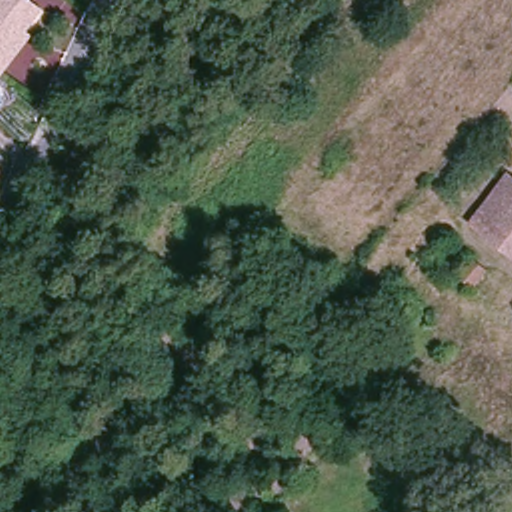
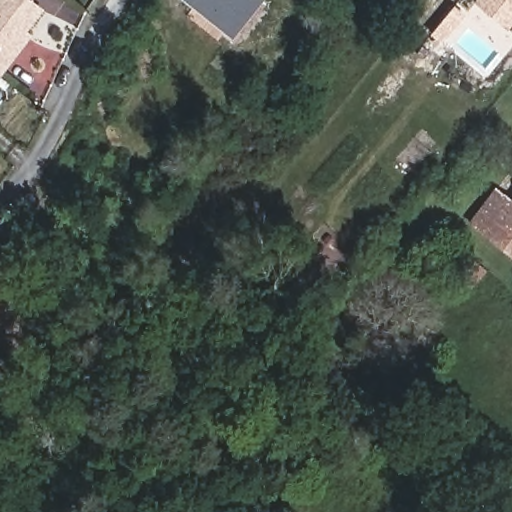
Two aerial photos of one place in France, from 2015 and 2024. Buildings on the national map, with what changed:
unchanged [(42,6),(9,51),(14,56),(1,72),(0,71),(0,0),(34,0),(42,6)]
new [(234,40),(182,0),(265,0),(234,40)]
new [(474,2),(476,0),(512,0),(512,23),(506,30),(474,2)]
unchanged [(512,178),(512,260),(474,230),(512,178)]
unchanged [(433,272),(445,260),(461,271),(471,258),(485,270),(465,295),(433,272)]
unchanged [(204,387),(187,370),(204,350),(222,366),(204,387)]

